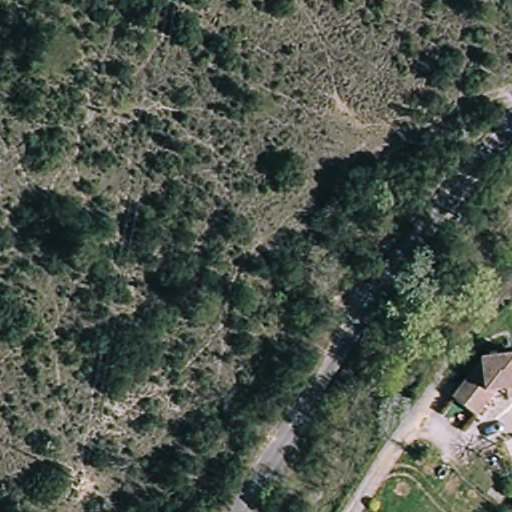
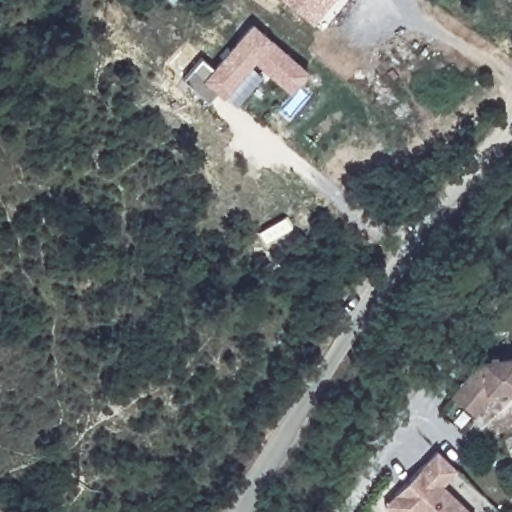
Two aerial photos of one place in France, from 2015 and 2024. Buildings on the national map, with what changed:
new [(286,0),(331,0),(313,21),(286,0)]
new [(211,68),(251,22),(271,40),(309,71),(291,92),(254,61),(223,97),(216,90),(207,100),(182,79),(201,57),(211,68)]
unchanged [(484,353),(512,355),(512,384),(495,382),(471,405),(452,381),(484,353)]
new [(438,451),(457,470),(442,485),(470,512),(391,512),(384,505),(395,495),(438,451)]

